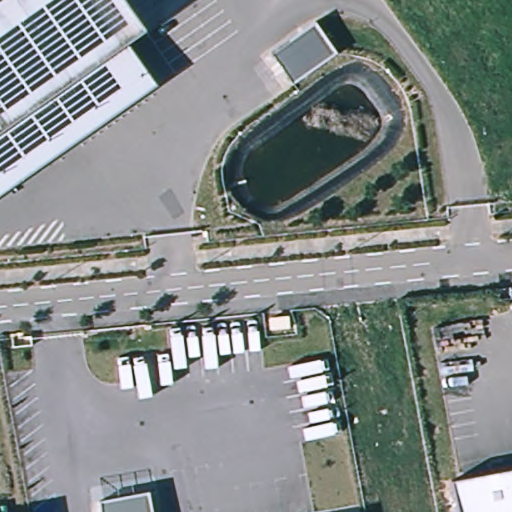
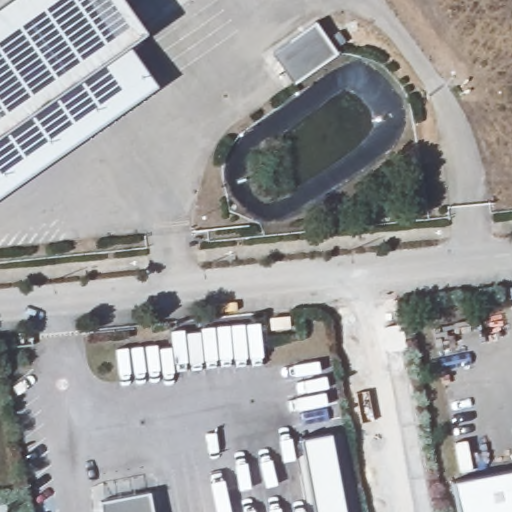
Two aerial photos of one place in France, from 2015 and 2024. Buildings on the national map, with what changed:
unchanged [(146,31),(89,70),(9,126),(0,132),(0,0),(124,0),(146,31)]
unchanged [(337,53),(294,82),(273,54),(316,22),(337,53)]
unchanged [(0,132),(9,126),(89,70),(146,31),(175,72),(0,194),(0,132)]
unchanged [(290,328),(271,329),(270,319),(289,317),(290,328)]
new [(332,433),(347,512),(313,512),(300,438),(332,433)]
unchanged [(457,512),(451,481),(512,470),(512,512),(457,512)]
unchanged [(146,492),(150,512),(99,512),(98,501),(146,492)]

